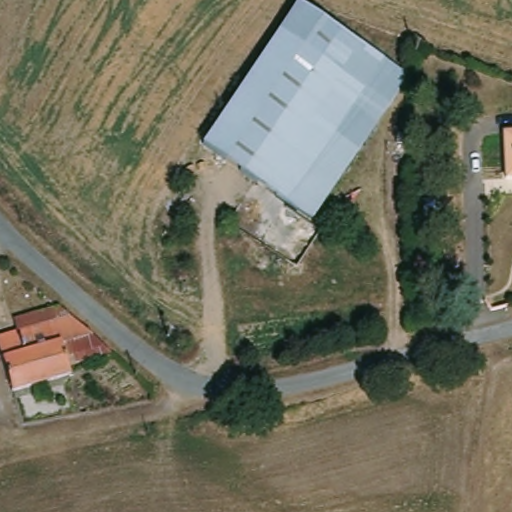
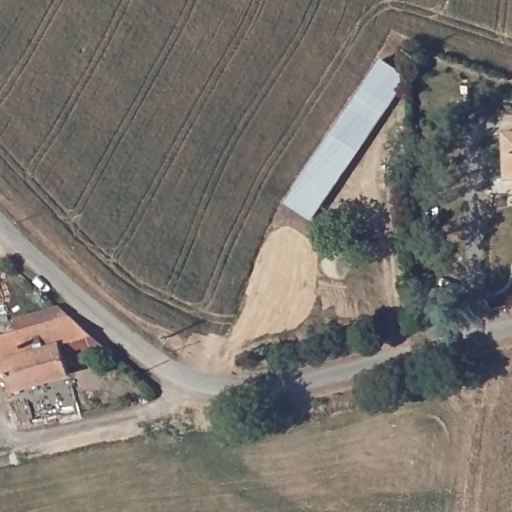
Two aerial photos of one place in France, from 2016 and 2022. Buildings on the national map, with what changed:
demolished [(298,2),(379,61),(363,86),(299,44),(280,31),(298,2)]
demolished [(252,182),(202,145),(280,31),(299,44),(252,182)]
demolished [(363,86),(286,205),(252,182),(299,44),(363,86)]
unchanged [(363,86),(379,61),(402,77),(309,220),(286,205),(363,86)]
unchanged [(505,181),(502,133),(512,133),(512,181),(505,181)]
unchanged [(67,368),(9,385),(0,355),(0,330),(14,327),(10,312),(55,299),(87,327),(107,344),(65,360),(67,368)]

